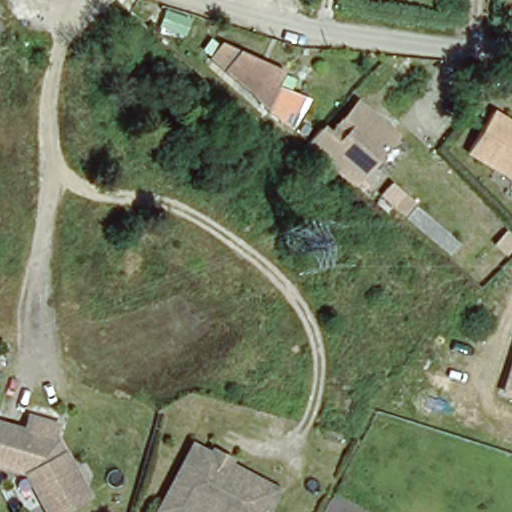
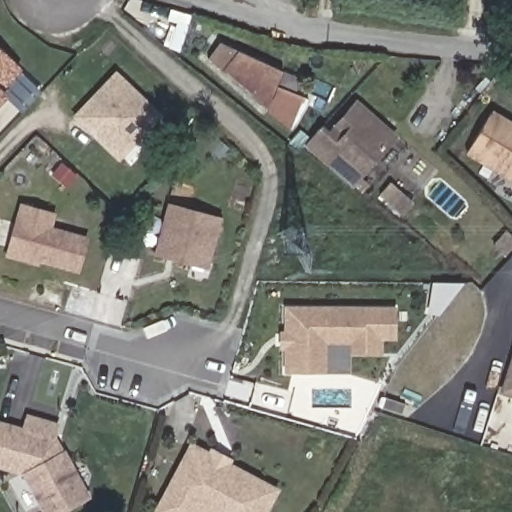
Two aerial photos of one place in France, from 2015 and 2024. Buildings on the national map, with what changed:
unchanged [(275,70),(270,85),(300,99),(288,125),(267,112),(247,92),(209,60),(219,42),(275,70)]
new [(0,51),(19,69),(0,87),(0,51)]
new [(74,116),(117,71),(164,116),(119,161),(74,116)]
new [(0,99),(0,94),(2,96),(0,99)]
unchanged [(346,106),(353,99),(362,106),(390,131),(347,178),(303,139),(315,123),(324,131),(346,106)]
unchanged [(512,124),(512,176),(468,147),(492,111),(512,124)]
new [(402,216),(390,205),(378,196),(390,182),(402,192),(413,202),(402,216)]
new [(79,274),(6,257),(19,202),(57,212),(54,228),(89,236),(79,274)]
new [(210,268),(155,255),(168,203),(224,217),(210,268)]
new [(433,281),(462,281),(441,309),(430,308),(433,281)]
new [(382,340),(382,355),(348,354),(348,345),(329,345),(328,372),(286,373),(285,350),(279,350),(278,331),(285,331),(286,306),(396,306),(396,340),(382,340)]
unchanged [(512,374),(512,396),(506,394),(512,374)]
unchanged [(27,426),(52,437),(47,449),(50,456),(61,458),(80,498),(52,512),(36,512),(19,476),(0,468),(0,429),(22,438),(27,426)]
unchanged [(193,445),(275,494),(264,512),(258,512),(268,495),(195,452),(162,508),(157,505),(193,445)]
unchanged [(268,495),(258,512),(211,512),(192,501),(186,512),(169,512),(162,508),(195,452),(268,495)]

